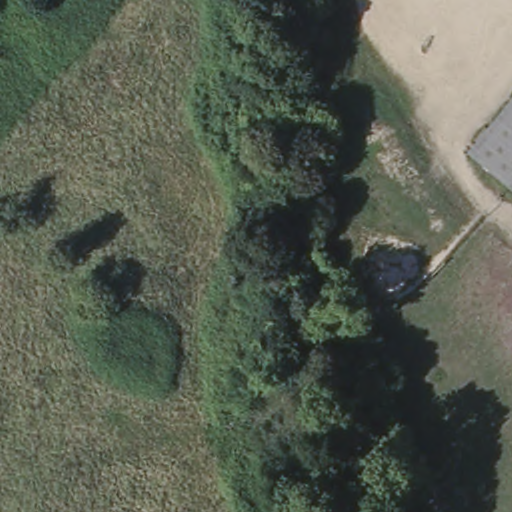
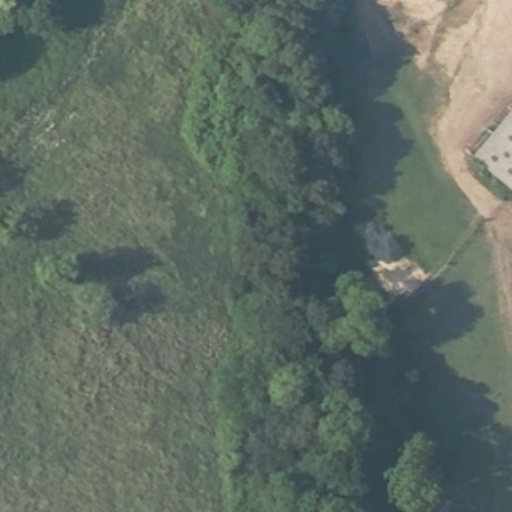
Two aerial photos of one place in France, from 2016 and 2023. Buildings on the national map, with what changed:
unchanged [(465,152),(512,95),(512,191),(465,152)]

